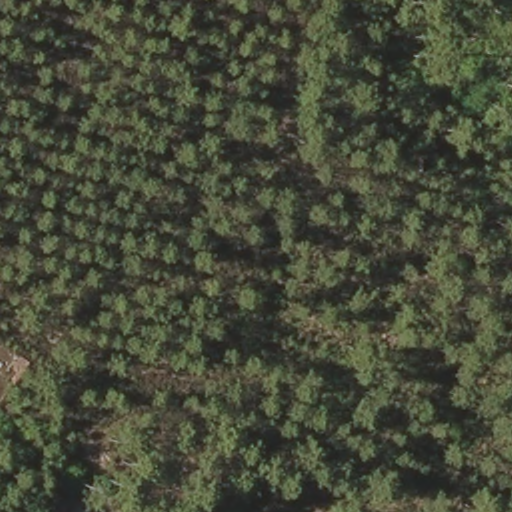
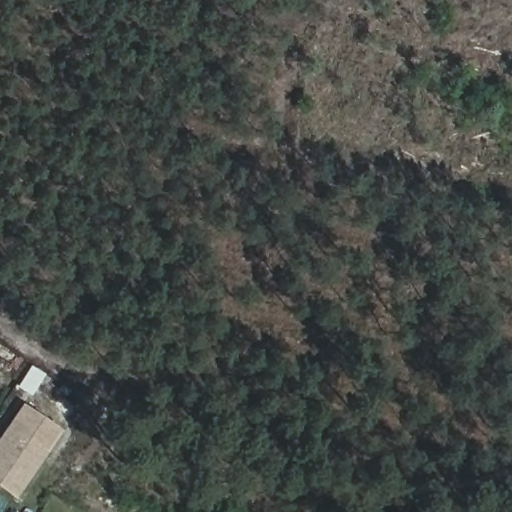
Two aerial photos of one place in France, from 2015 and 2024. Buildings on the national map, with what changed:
new [(17,499),(0,488),(0,437),(24,403),(63,430),(17,499)]

